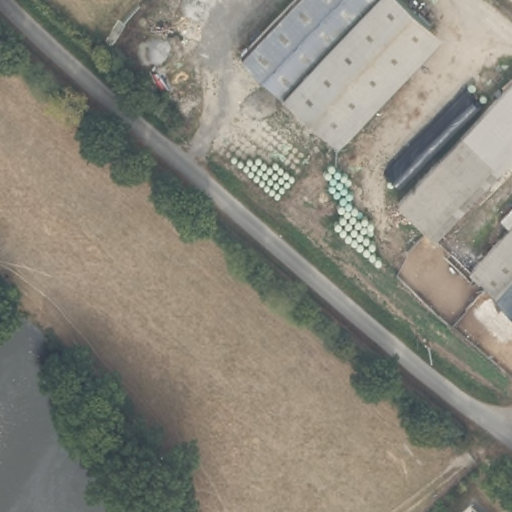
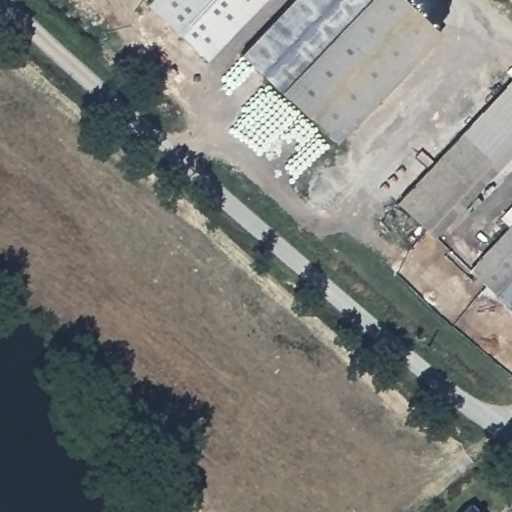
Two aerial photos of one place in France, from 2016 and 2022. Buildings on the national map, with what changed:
new [(205,61),(145,2),(146,0),(263,0),(205,61)]
unchanged [(246,61),(301,0),(402,0),(433,29),(331,137),(246,61)]
unchanged [(403,205),(512,82),(512,143),(432,232),(403,205)]
unchanged [(468,272),(512,224),(512,314),(468,272)]
unchanged [(480,512),(469,512),(476,507),(480,512)]

